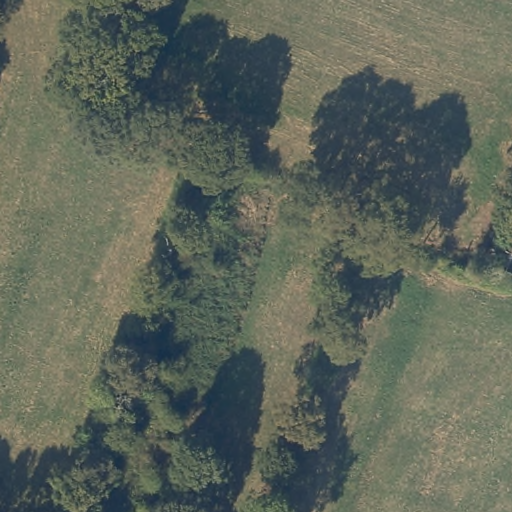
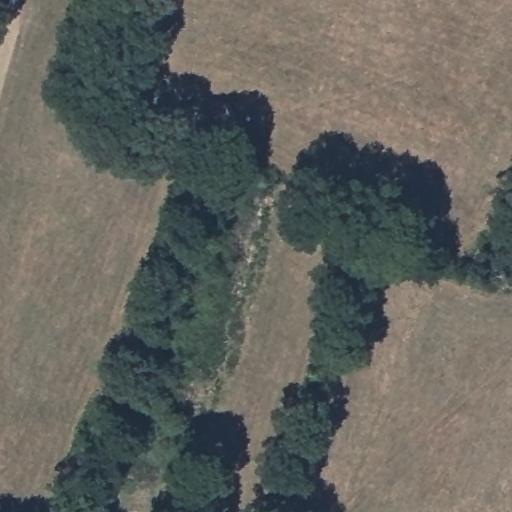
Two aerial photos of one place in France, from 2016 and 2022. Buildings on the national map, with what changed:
unchanged [(499,269),(512,239),(512,274),(499,269)]

